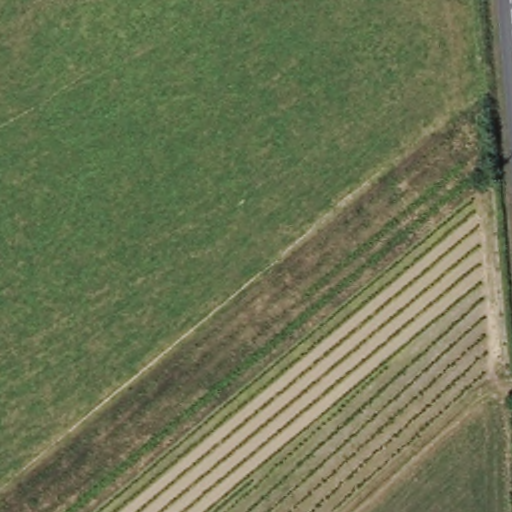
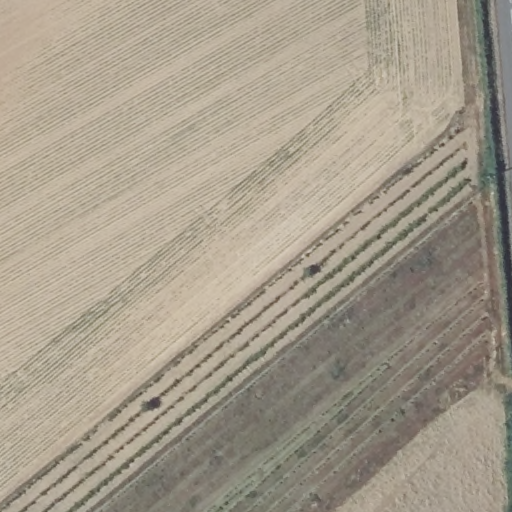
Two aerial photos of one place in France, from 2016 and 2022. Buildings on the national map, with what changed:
[]

